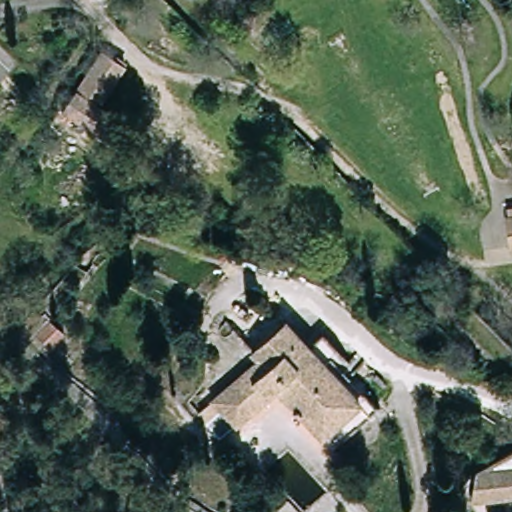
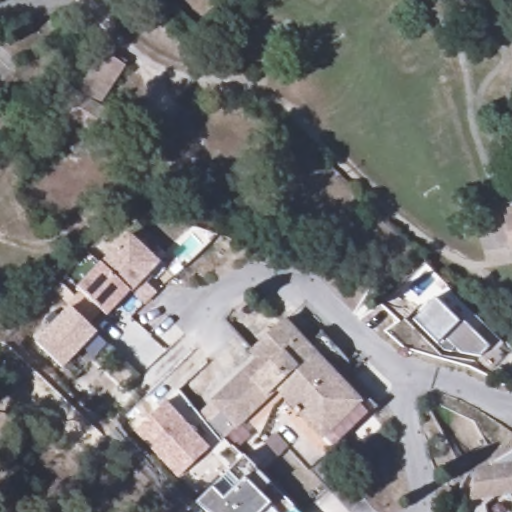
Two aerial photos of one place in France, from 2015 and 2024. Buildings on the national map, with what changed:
demolished [(122,69),(97,108),(108,115),(95,136),(58,113),(96,53),(122,69)]
new [(87,129),(61,112),(98,56),(101,58),(105,53),(127,67),(87,129)]
new [(502,219),(500,209),(512,207),(512,217),(502,219)]
unchanged [(511,249),(507,219),(512,218),(512,248),(511,249)]
new [(143,282),(154,294),(143,306),(128,294),(107,316),(101,310),(89,322),(98,331),(68,362),(65,359),(60,364),(36,343),(68,307),(81,292),(78,289),(128,234),(160,265),(143,282)]
new [(458,321),(489,348),(481,357),(461,354),(456,350),(454,353),(443,351),(437,345),(413,320),(434,299),(458,321)]
demolished [(73,341),(61,329),(73,317),(85,329),(73,341)]
unchanged [(356,404),(316,441),(272,393),(233,427),(207,401),(250,362),(243,355),(279,324),(356,404)]
new [(173,405),(216,452),(186,479),(143,432),(173,405)]
unchanged [(493,499),(490,512),(472,512),(474,503),(469,504),(467,471),(512,448),(512,496),(493,499)]
new [(246,459),(271,488),(260,498),(270,509),(266,512),(204,512),(196,505),(246,459)]

